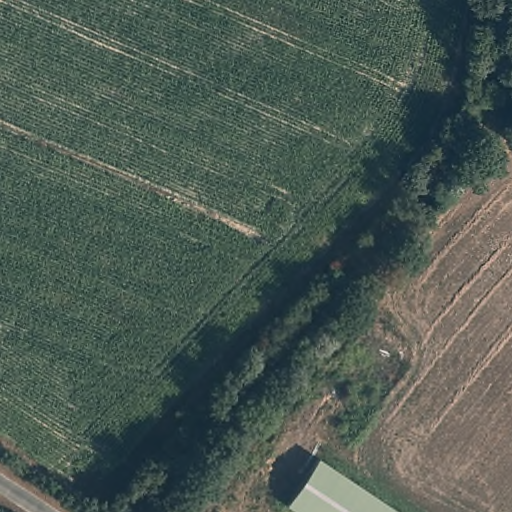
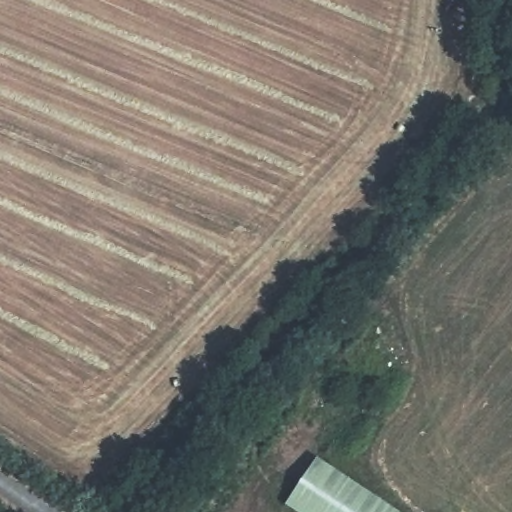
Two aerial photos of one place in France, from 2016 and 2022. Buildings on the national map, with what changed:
unchanged [(398,512),(297,512),(286,505),(316,458),(398,512)]

